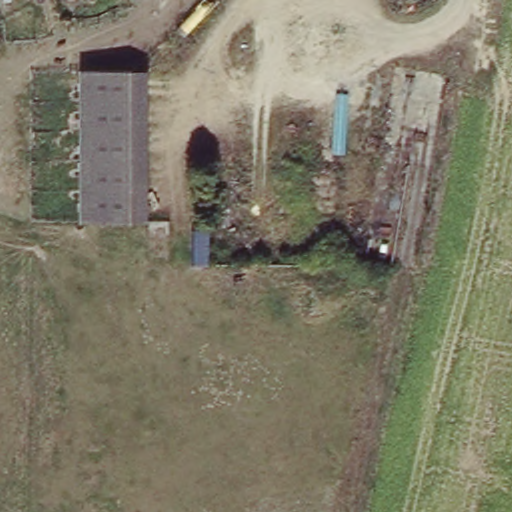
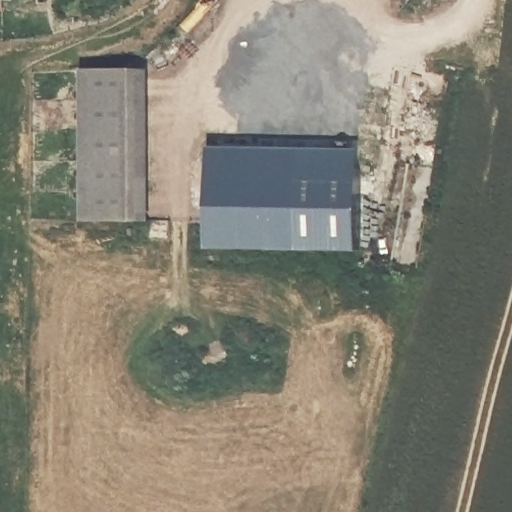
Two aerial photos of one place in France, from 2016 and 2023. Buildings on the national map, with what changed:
unchanged [(0,0),(12,0),(12,8),(0,7),(0,0)]
unchanged [(152,222),(80,219),(82,64),(152,64),(152,222)]
new [(207,157),(352,157),(351,259),(209,259),(207,157)]

